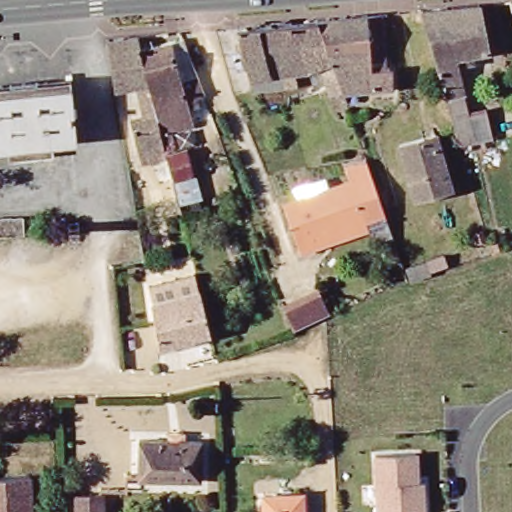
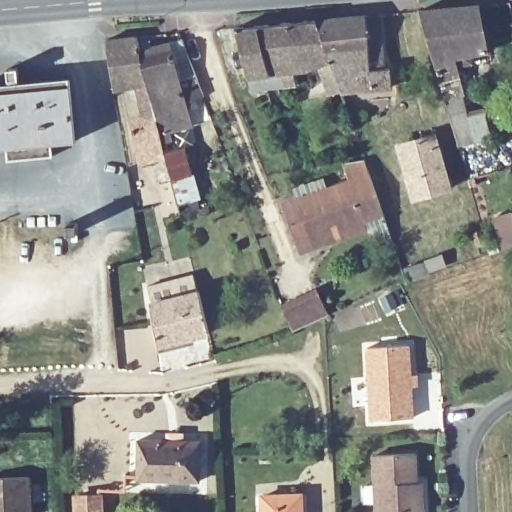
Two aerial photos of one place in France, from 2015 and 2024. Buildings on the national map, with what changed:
unchanged [(476,138),(457,144),(442,91),(420,11),(477,5),(485,51),(470,55),(471,61),(458,64),(466,95),(462,95),(467,111),(482,107),(491,133),(476,138)]
unchanged [(390,84),(342,91),(319,20),(367,15),(381,15),(386,66),(388,65),(390,84)]
unchanged [(240,28),(319,20),(342,91),(330,94),(320,64),(291,70),(293,84),(252,90),(249,70),(240,28)]
unchanged [(160,140),(162,150),(164,156),(146,160),(139,162),(130,122),(141,120),(134,84),(112,88),(104,39),(136,36),(137,47),(160,140)]
unchanged [(137,47),(179,36),(197,88),(179,94),(190,132),(160,140),(137,47)]
unchanged [(4,81),(2,68),(15,66),(16,80),(68,75),(74,135),(47,137),(49,151),(30,153),(28,140),(0,142),(0,82),(4,81)]
unchanged [(447,189),(413,199),(400,146),(433,136),(447,189)]
unchanged [(164,156),(162,150),(188,143),(198,181),(155,192),(146,160),(164,156)]
unchanged [(352,180),(352,179),(347,165),(346,162),(365,156),(366,160),(370,175),(381,206),(385,219),(367,225),(367,226),(305,247),(297,249),(282,202),(287,200),(352,180)]
new [(490,219),(507,214),(512,212),(512,242),(497,246),(490,219)]
unchanged [(19,218),(20,234),(0,234),(0,219),(19,218)]
new [(442,253),(447,266),(412,280),(407,266),(442,253)]
unchanged [(197,293),(207,335),(155,346),(148,304),(152,303),(149,286),(190,278),(193,295),(197,293)]
unchanged [(332,312),(298,327),(290,303),(323,288),(332,312)]
new [(411,344),(415,416),(368,420),(363,347),(411,344)]
unchanged [(201,486),(139,485),(140,445),(202,447),(201,486)]
unchanged [(419,452),(420,482),(425,481),(426,495),(426,512),(381,512),(378,455),(419,452)]
unchanged [(32,475),(32,512),(0,512),(0,477),(32,475)]
unchanged [(302,495),(302,512),(263,512),(262,496),(302,495)]
unchanged [(103,512),(76,512),(76,498),(102,497),(103,512)]

